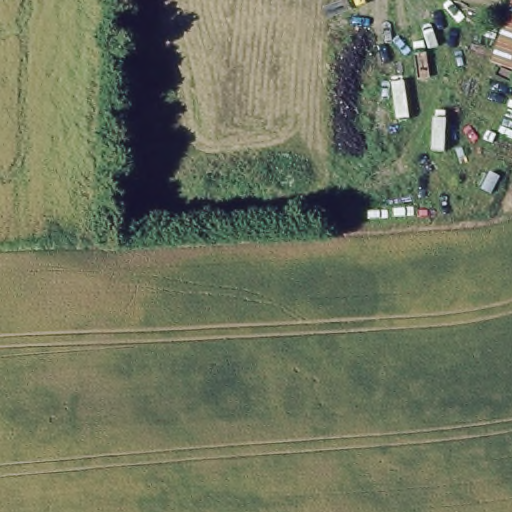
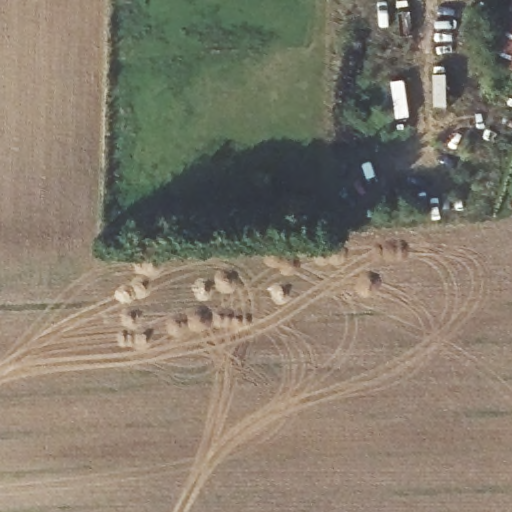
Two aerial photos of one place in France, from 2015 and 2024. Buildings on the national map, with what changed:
unchanged [(512,0),(512,70),(490,61),(512,0)]

